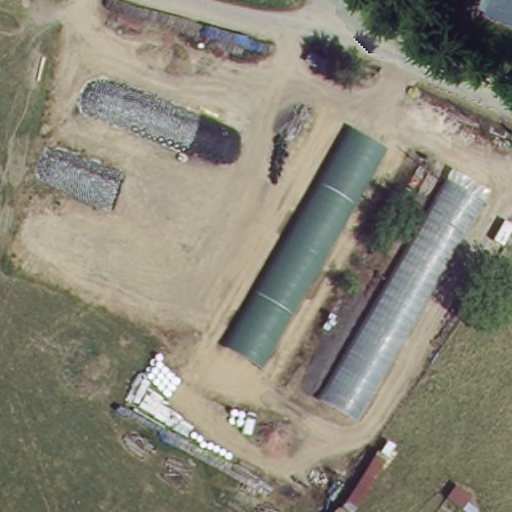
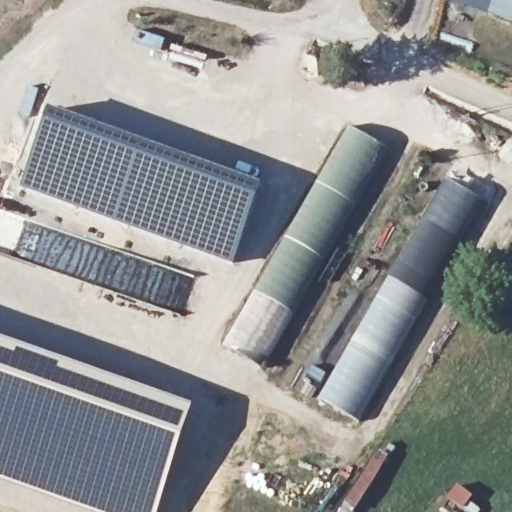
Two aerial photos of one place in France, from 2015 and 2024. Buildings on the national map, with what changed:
new [(462,0),(492,0),(487,14),(460,4),(462,0)]
unchanged [(487,14),(492,0),(512,0),(512,23),(487,14)]
new [(40,104),(137,137),(264,184),(233,267),(152,240),(15,190),(40,104)]
unchanged [(266,365),(227,344),(350,127),(388,147),(266,365)]
unchanged [(448,170),(490,188),(372,407),(328,387),(448,170)]
new [(157,512),(97,512),(0,478),(0,337),(195,404),(157,512)]

